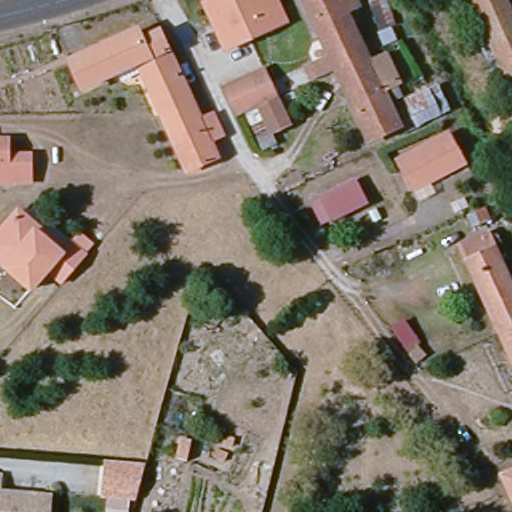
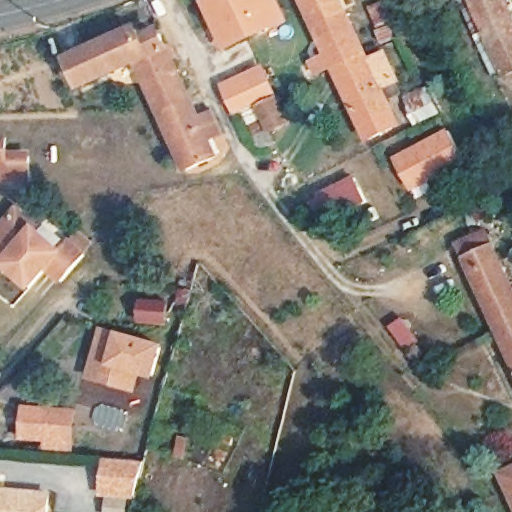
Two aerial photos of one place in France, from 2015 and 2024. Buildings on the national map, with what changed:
unchanged [(217,0),(268,0),(280,26),(269,31),(221,54),(200,9),(217,0)]
unchanged [(301,66),(304,71),(321,63),(291,0),(344,0),(348,9),(335,15),(356,61),(326,74),(309,83),(298,87),(290,71),(301,66)]
unchanged [(467,15),(460,0),(494,0),(495,3),(510,35),(483,48),(467,15)]
unchanged [(132,66),(77,91),(65,65),(132,33),(136,44),(152,36),(187,108),(158,121),(132,66)]
unchanged [(512,38),(512,72),(497,79),(483,48),(510,35),(512,38)]
unchanged [(356,61),(360,68),(376,60),(388,86),(373,93),(390,130),(359,145),(326,74),(356,61)]
unchanged [(265,134),(252,109),(230,119),(216,91),(259,72),(271,101),(269,101),(281,126),(265,134)]
demolished [(512,77),(512,82),(510,78),(512,77)]
unchanged [(446,123),(425,132),(414,108),(433,99),(446,123)]
unchanged [(194,124),(209,116),(219,140),(204,147),(211,162),(183,176),(158,121),(187,108),(194,124)]
unchanged [(417,196),(400,161),(452,136),(472,172),(417,196)]
unchanged [(9,148),(10,166),(30,166),(30,181),(30,193),(0,192),(0,148),(9,148)]
unchanged [(362,207),(328,223),(317,201),(350,184),(362,207)]
unchanged [(484,220),(470,227),(465,216),(479,210),(484,220)]
unchanged [(21,275),(10,265),(15,260),(0,246),(0,238),(21,214),(42,232),(40,235),(65,256),(73,246),(89,260),(84,267),(65,287),(50,273),(34,292),(18,278),(21,275)]
unchanged [(487,233),(512,286),(512,326),(500,332),(461,246),(487,233)]
unchanged [(512,357),(500,332),(512,326),(512,357)]
new [(120,332),(165,346),(156,381),(141,377),(137,394),(86,380),(100,328),(120,332)]
unchanged [(412,348),(400,358),(385,339),(396,329),(412,348)]
new [(23,405),(77,408),(75,453),(41,450),(42,443),(20,441),(23,405)]
unchanged [(107,460),(145,464),(135,498),(104,495),(107,460)]
unchanged [(512,468),(512,512),(495,476),(512,468)]
unchanged [(5,475),(3,490),(54,495),(52,512),(0,512),(0,474),(5,475)]

